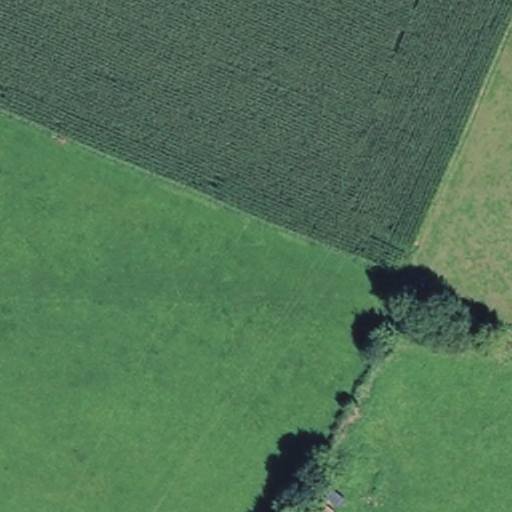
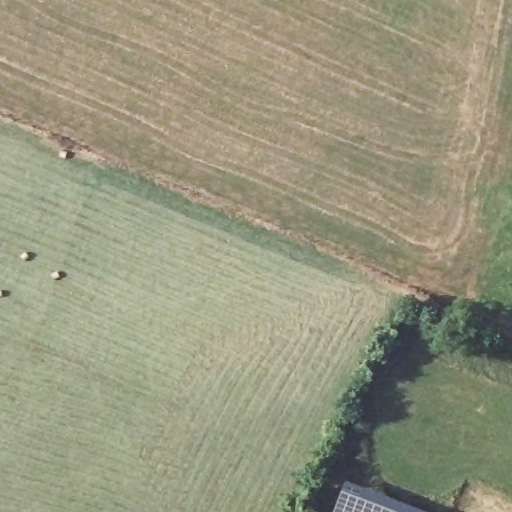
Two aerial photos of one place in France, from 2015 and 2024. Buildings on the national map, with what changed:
new [(368,491),(388,500),(418,512),(333,512),(344,484),(368,491)]

